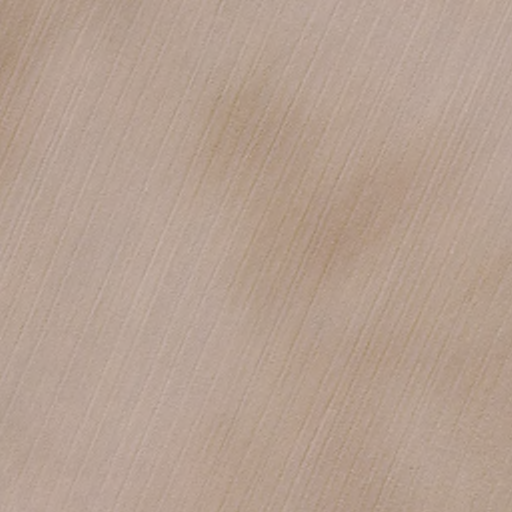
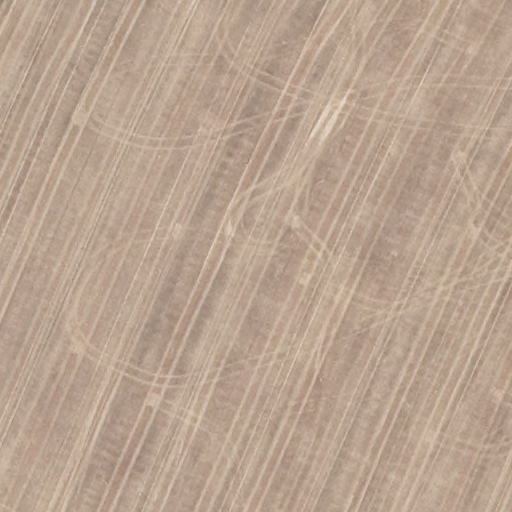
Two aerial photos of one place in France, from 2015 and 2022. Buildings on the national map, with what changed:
[]

